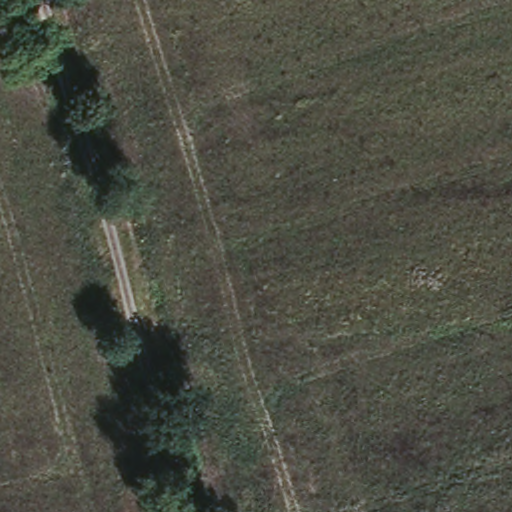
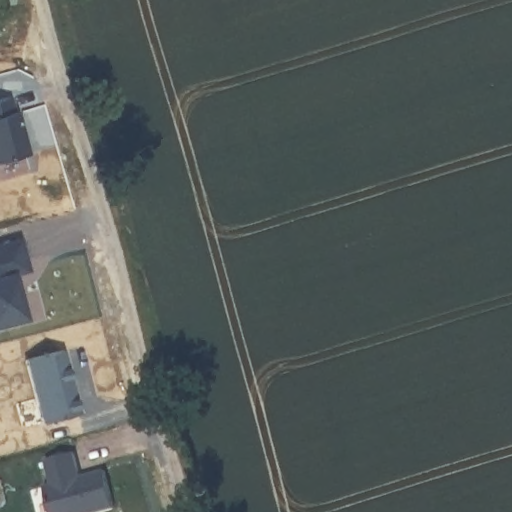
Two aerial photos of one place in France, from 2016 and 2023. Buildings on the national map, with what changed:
new [(28,156),(0,164),(0,99),(12,96),(28,156)]
new [(30,271),(12,273),(24,321),(0,328),(0,243),(21,238),(30,271)]
new [(62,351),(80,414),(44,422),(26,360),(62,351)]
new [(83,475),(106,469),(116,509),(103,512),(53,512),(46,486),(52,484),(47,459),(77,452),(83,475)]

